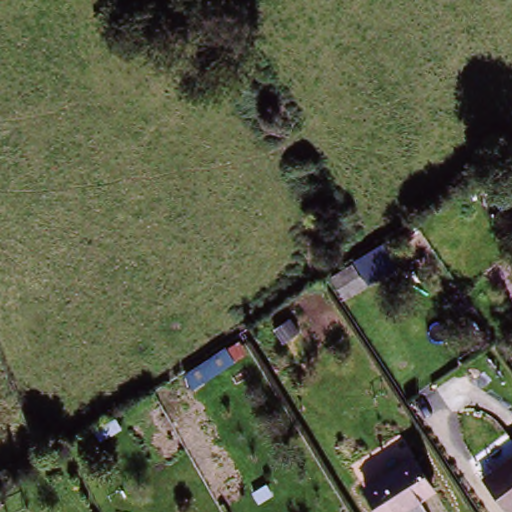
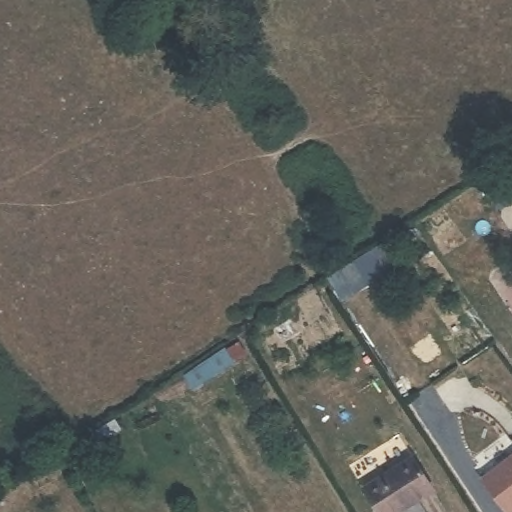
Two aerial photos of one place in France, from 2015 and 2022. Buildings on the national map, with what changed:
unchanged [(412,454),(431,486),(387,512),(380,512),(363,483),(412,454)]
unchanged [(483,473),(512,456),(512,504),(504,508),(483,473)]

